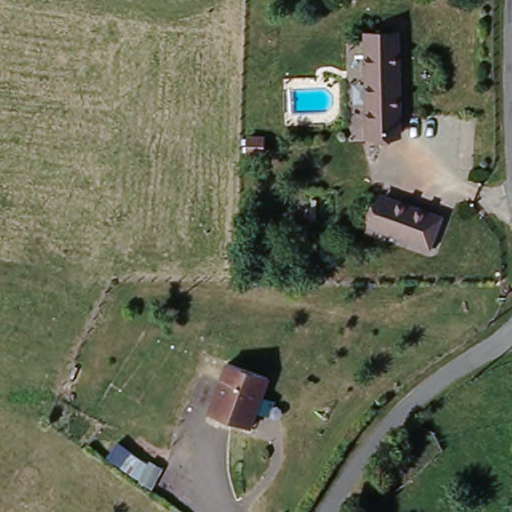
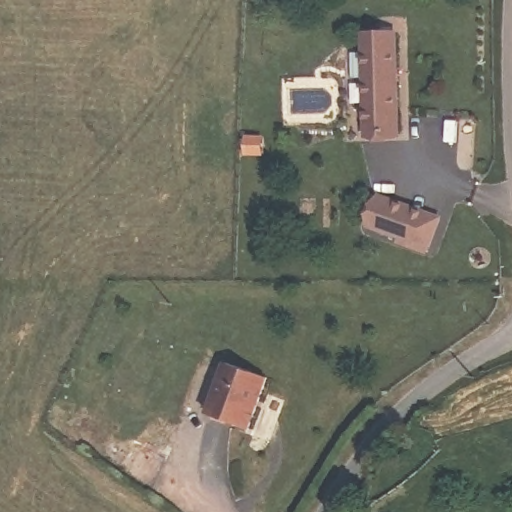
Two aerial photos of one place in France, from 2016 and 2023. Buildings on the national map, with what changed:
unchanged [(400,35),(398,132),(365,132),(366,35),(400,35)]
unchanged [(447,211),(433,249),(362,228),(379,194),(447,211)]
unchanged [(269,380),(251,430),(210,415),(229,364),(269,380)]
unchanged [(117,441),(161,469),(149,490),(106,459),(117,441)]

